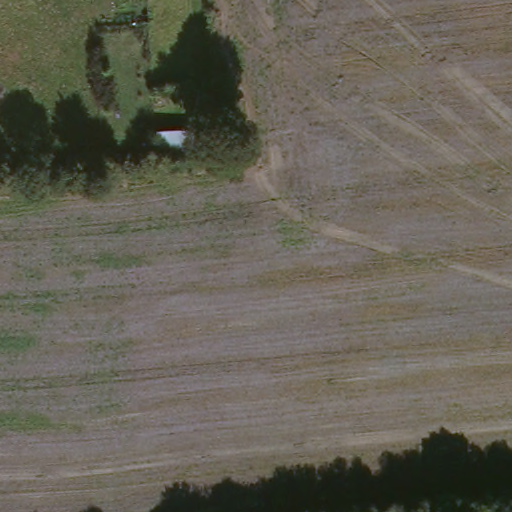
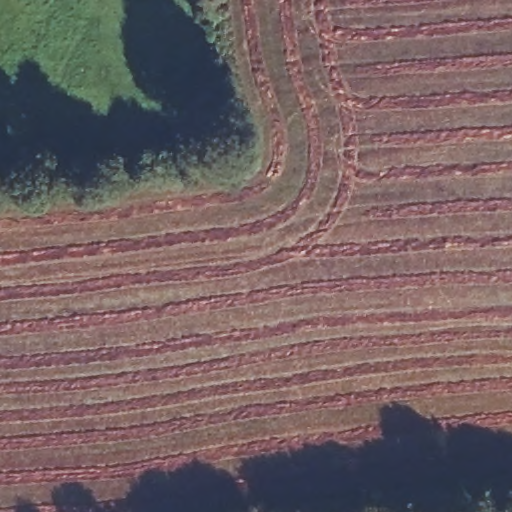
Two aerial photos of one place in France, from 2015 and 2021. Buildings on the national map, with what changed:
unchanged [(195,126),(194,159),(156,159),(156,125),(195,126)]

